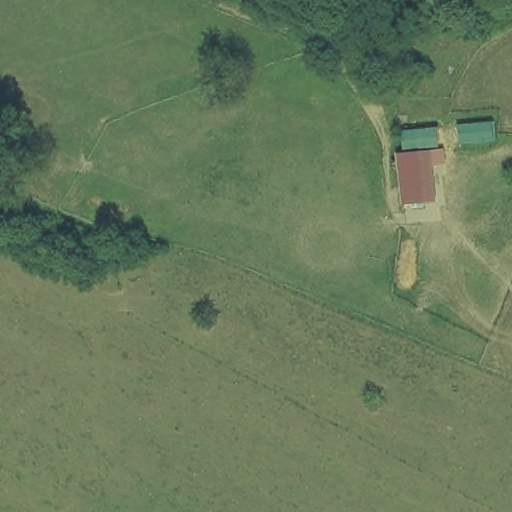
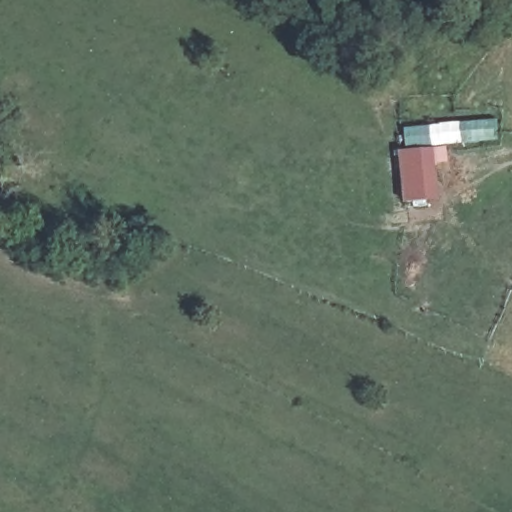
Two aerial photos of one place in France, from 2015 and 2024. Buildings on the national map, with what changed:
unchanged [(449,151),(440,152),(444,204),(409,207),(405,152),(411,151),(409,130),(447,126),(449,151)]

